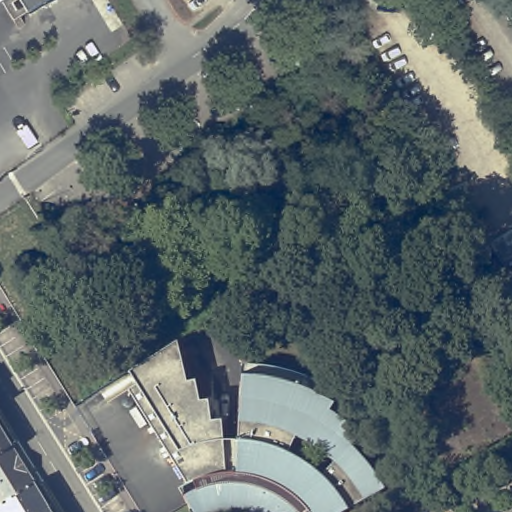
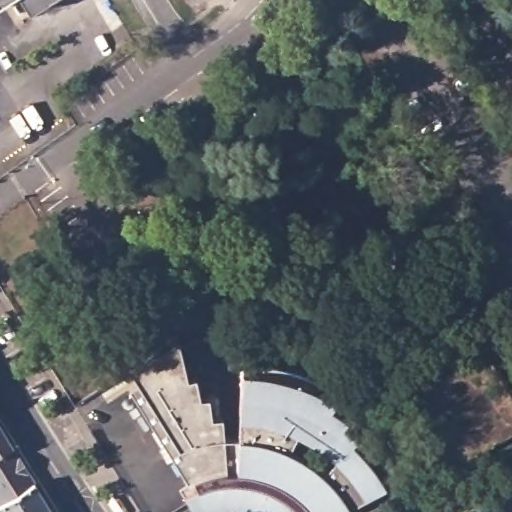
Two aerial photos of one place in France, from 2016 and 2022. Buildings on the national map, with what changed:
unchanged [(3,0),(5,0),(4,1),(3,0)]
unchanged [(22,0),(50,0),(30,12),(22,0)]
unchanged [(385,350),(371,358),(360,340),(375,332),(385,350)]
unchanged [(191,480),(131,385),(140,380),(134,367),(171,343),(181,337),(185,356),(190,378),(199,376),(202,397),(212,396),(215,417),(226,416),(228,437),(237,436),(244,437),(248,359),(264,360),(278,362),(294,366),(311,372),(326,378),(322,387),(340,397),(335,405),(352,416),(347,422),(362,435),(357,440),(365,447),(371,454),(378,462),(382,467),(387,476),(392,484),(342,512),(318,512),(315,509),(313,507),(307,512),(264,512),(260,510),(245,506),(231,506),(215,509),(209,512),(198,512),(187,494),(181,486),(191,480)]
unchanged [(440,439),(411,391),(410,387),(410,384),(410,381),(413,377),(477,338),(481,337),(484,337),(486,337),(489,338),(491,341),(512,377),(512,424),(460,456),(456,457),(452,457),(449,455),(446,452),(436,457),(430,445),(440,439)]
unchanged [(14,446),(0,454),(0,424),(14,446)]
unchanged [(14,446),(36,482),(0,503),(0,454),(14,446)]
unchanged [(36,482),(52,507),(44,512),(0,512),(0,503),(36,482)]
unchanged [(52,507),(55,512),(44,512),(52,507)]

